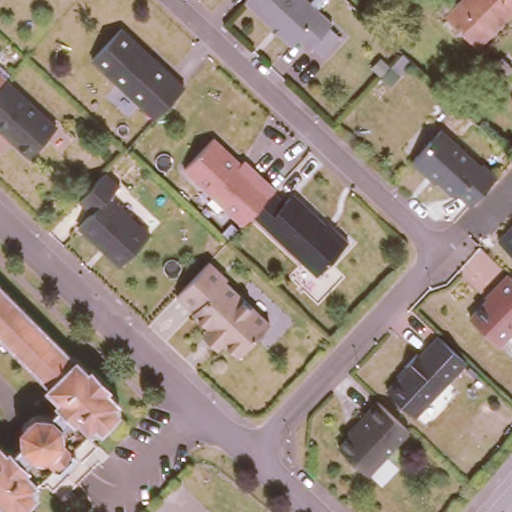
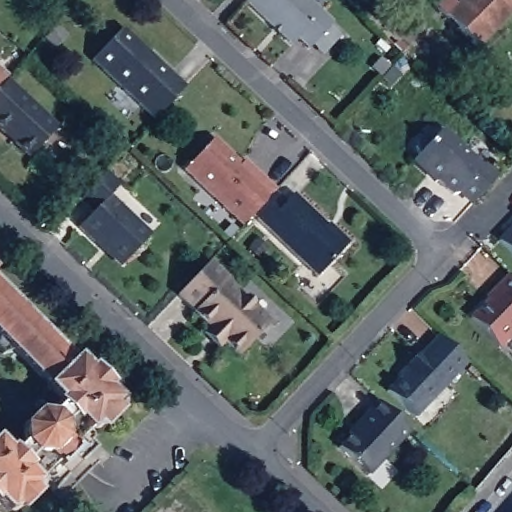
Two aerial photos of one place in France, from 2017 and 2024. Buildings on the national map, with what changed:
unchanged [(312,0),(338,25),(315,49),(304,39),(298,46),(252,2),(253,0),(312,0)]
unchanged [(444,6),(450,0),(462,0),(462,1),(464,0),(512,0),(512,15),(483,44),(444,6)]
unchanged [(122,24),(185,82),(155,114),(92,56),(122,24)]
unchanged [(512,64),(512,74),(497,90),(492,95),(483,85),(487,80),(507,60),(512,64)]
unchanged [(7,78),(6,79),(0,85),(0,71),(7,78)]
unchanged [(0,127),(0,85),(6,79),(56,126),(30,155),(14,140),(4,131),(0,127)]
unchanged [(441,128),(481,165),(483,163),(497,176),(472,201),(460,189),(457,192),(452,193),(437,179),(440,177),(431,169),(427,169),(414,157),(441,128)]
unchanged [(253,217),(243,226),(183,169),(216,136),(244,161),(247,157),(292,199),(298,194),(351,242),(316,276),(253,217)]
unchanged [(105,173),(119,186),(109,197),(150,236),(123,263),(97,238),(94,242),(78,227),(92,212),(80,200),(105,173)]
unchanged [(512,224),(512,252),(498,239),(512,224)]
unchanged [(225,344),(222,347),(207,333),(210,330),(192,315),(195,312),(174,293),(214,261),(232,277),(230,281),(276,321),(238,357),(225,344)]
unchanged [(497,287),(508,275),(512,278),(512,332),(498,346),(470,317),(498,288),(497,287)]
unchanged [(72,352),(74,350),(87,362),(90,359),(109,378),(106,382),(119,395),(117,396),(119,400),(119,405),(120,406),(103,423),(102,422),(92,425),(90,423),(72,442),(77,446),(60,463),(55,458),(37,477),(41,480),(38,486),(40,487),(22,507),(20,505),(12,502),(10,504),(0,494),(0,439),(6,445),(8,443),(12,446),(19,438),(18,430),(20,422),(24,415),(31,410),(39,408),(47,408),(60,397),(57,393),(59,392),(46,378),(49,376),(13,340),(3,342),(0,339),(0,280),(72,352)]
unchanged [(409,369),(407,367),(419,353),(422,356),(440,336),(468,362),(417,417),(389,391),(409,369)]
unchanged [(340,447),(352,433),(350,432),(357,423),(378,401),(410,431),(369,475),(340,447)]

